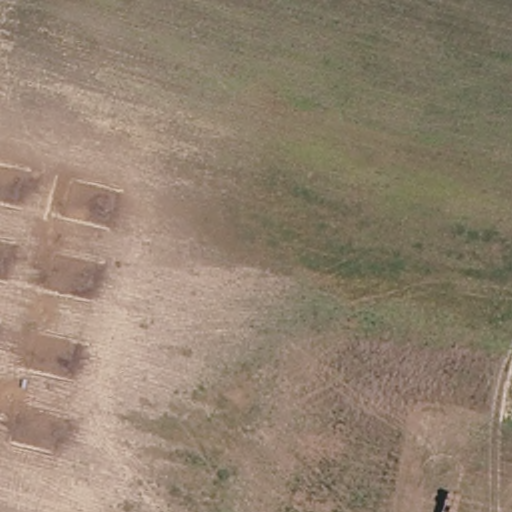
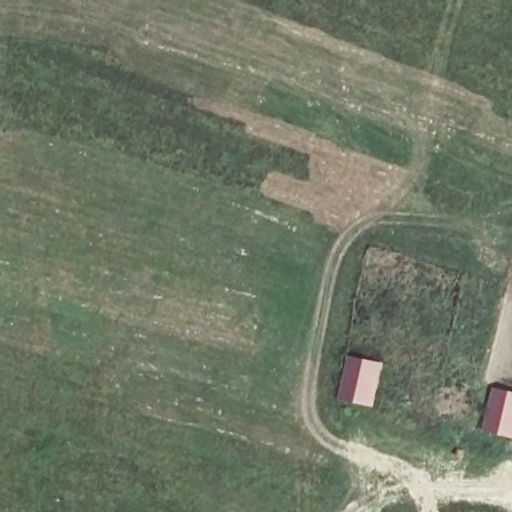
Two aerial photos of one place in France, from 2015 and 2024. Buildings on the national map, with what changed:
new [(346,353),(384,362),(373,407),(335,398),(346,353)]
new [(494,387),(512,391),(512,437),(484,430),(494,387)]

